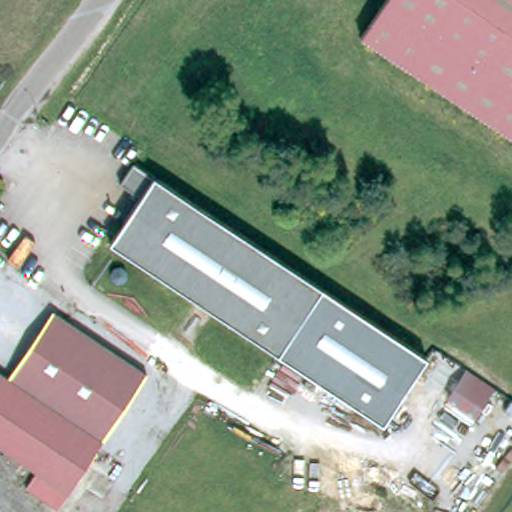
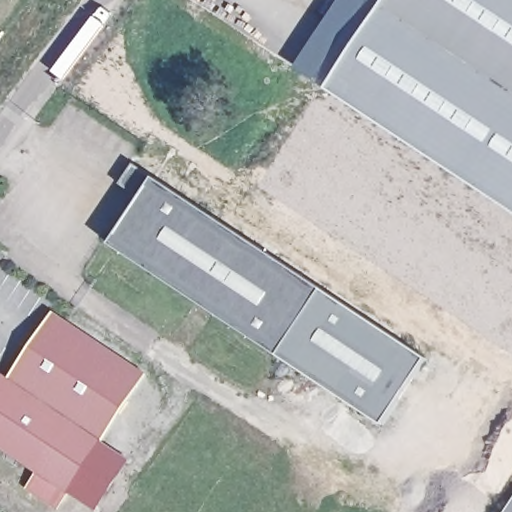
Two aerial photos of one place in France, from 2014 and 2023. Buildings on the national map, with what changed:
unchanged [(379,0),(512,0),(512,132),(359,31),(379,0)]
new [(512,132),(512,212),(323,90),(361,32),(512,132)]
unchanged [(382,422),(111,238),(141,192),(115,175),(129,153),(155,170),(426,356),(382,422)]
unchanged [(7,375),(51,307),(145,370),(100,437),(50,511),(36,502),(53,476),(19,454),(13,462),(0,453),(0,450),(4,445),(0,442),(0,370),(7,375)]
new [(131,458),(96,511),(64,490),(99,438),(131,458)]

